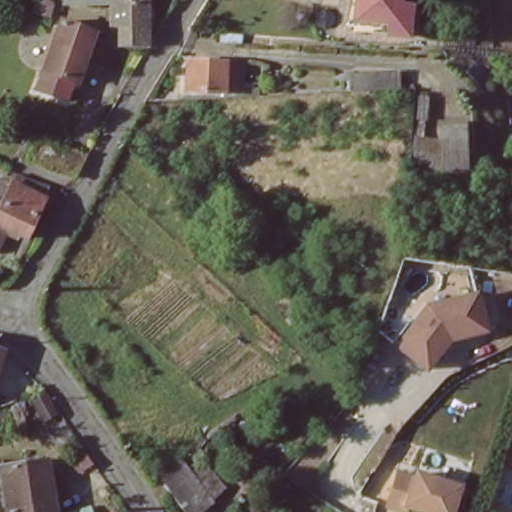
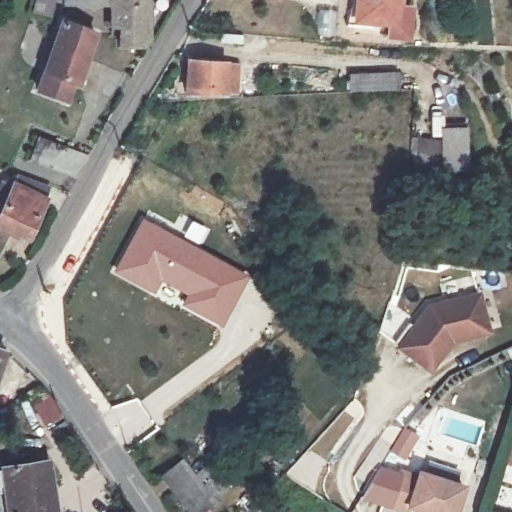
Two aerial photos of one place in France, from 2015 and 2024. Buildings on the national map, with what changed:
unchanged [(84,7),(85,0),(109,0),(108,7),(84,7)]
unchanged [(115,49),(116,35),(107,34),(108,7),(109,0),(149,0),(146,47),(115,49)]
unchanged [(411,1),(408,33),(400,32),(381,31),(382,17),(356,16),(358,0),(398,0),(398,2),(411,1)]
unchanged [(86,34),(70,84),(66,83),(60,105),(32,96),(54,25),(86,34)]
unchanged [(176,61),(215,61),(215,64),(226,64),(236,64),(236,89),(234,89),(215,89),(215,92),(170,93),(176,61)]
unchanged [(463,125),(465,168),(440,170),(438,126),(463,125)]
new [(36,139),(84,160),(71,184),(25,164),(36,139)]
unchanged [(25,241),(6,232),(0,244),(0,202),(1,203),(10,184),(43,201),(25,241)]
new [(142,217),(183,239),(191,219),(208,228),(197,247),(249,275),(223,328),(180,306),(185,295),(162,282),(155,295),(112,272),(142,217)]
unchanged [(483,324),(448,332),(426,362),(398,340),(428,301),(474,288),(483,324)]
unchanged [(191,452),(221,496),(198,512),(169,469),(191,452)]
unchanged [(42,462),(50,508),(51,512),(2,512),(0,503),(0,467),(42,462)]
unchanged [(452,512),(429,512),(406,505),(405,510),(389,505),(400,471),(415,476),(416,471),(444,480),(460,485),(452,512)]

